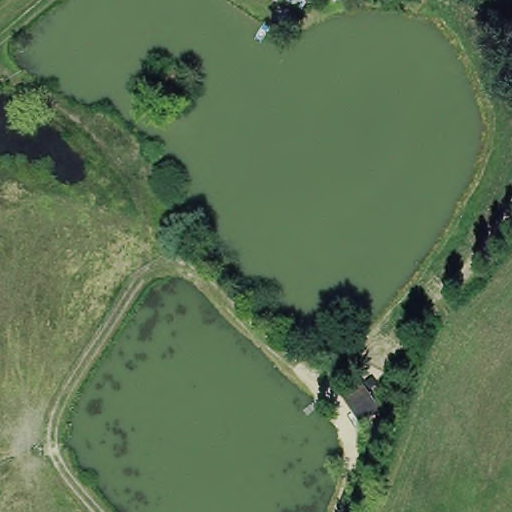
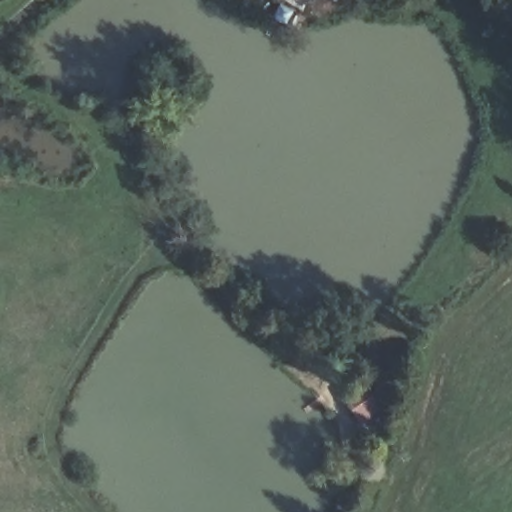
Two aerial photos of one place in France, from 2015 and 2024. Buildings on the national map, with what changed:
unchanged [(283,0),(306,0),(300,11),(283,0)]
unchanged [(382,414),(360,430),(335,396),(360,381),(382,414)]

